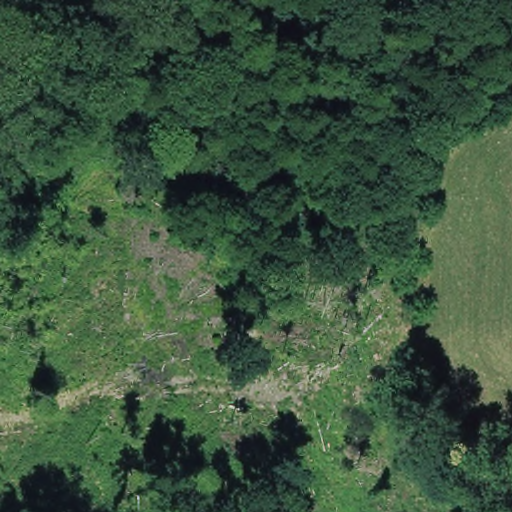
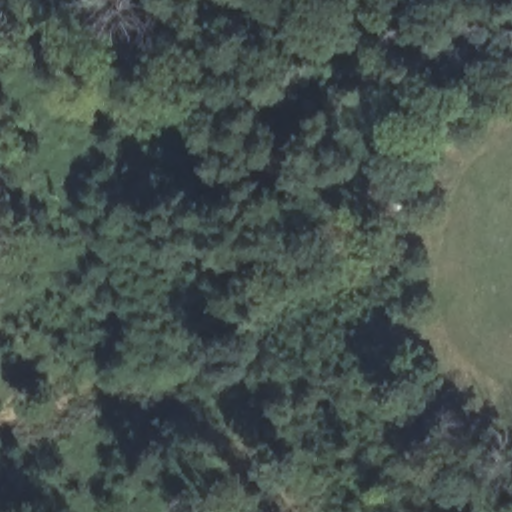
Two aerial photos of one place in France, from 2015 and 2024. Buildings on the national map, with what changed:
[]

